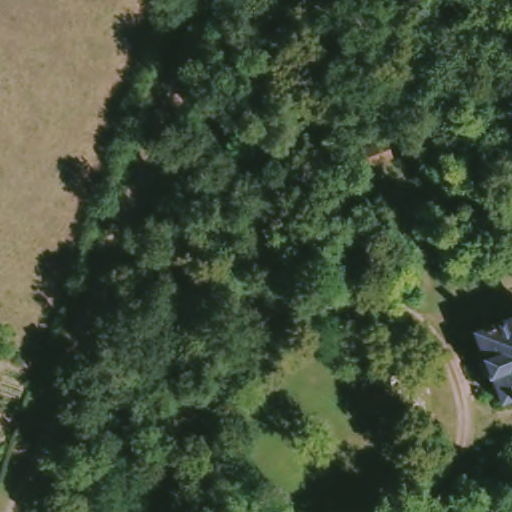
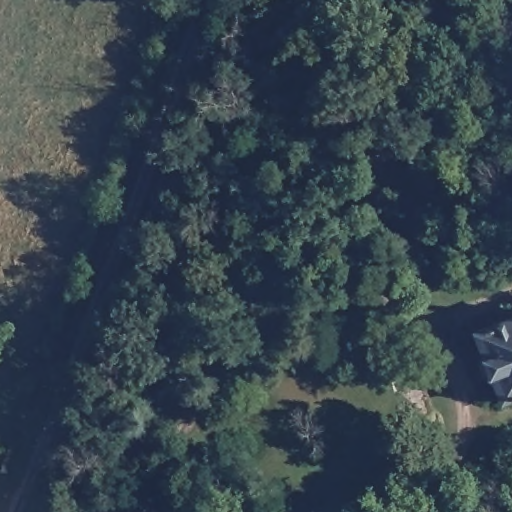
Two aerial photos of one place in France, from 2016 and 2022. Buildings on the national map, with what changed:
unchanged [(391,138),(397,150),(369,162),(364,149),(391,138)]
unchanged [(487,374),(481,357),(486,355),(478,330),(512,318),(512,394),(501,398),(493,373),(487,374)]

